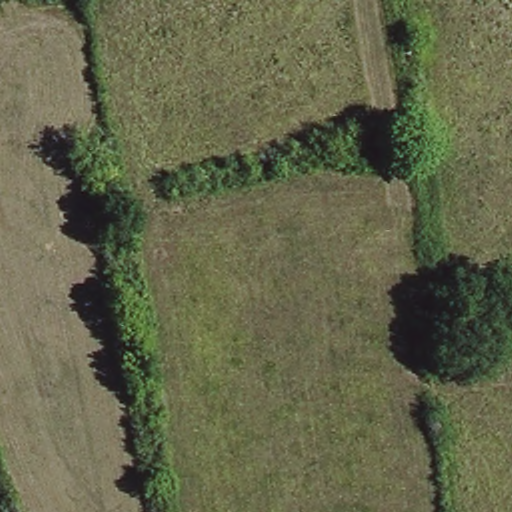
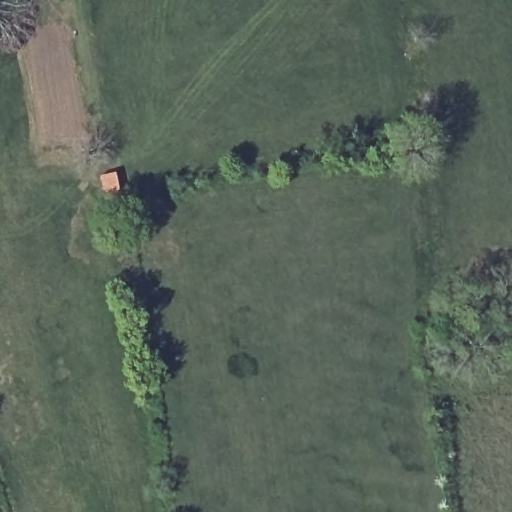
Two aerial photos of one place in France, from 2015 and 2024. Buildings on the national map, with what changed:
unchanged [(111,172),(114,190),(97,194),(95,176),(111,172)]

